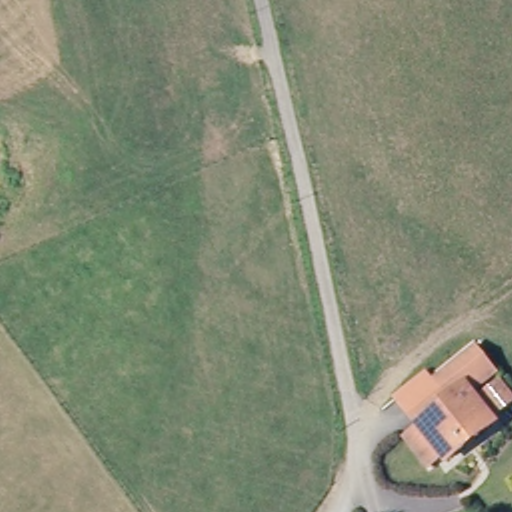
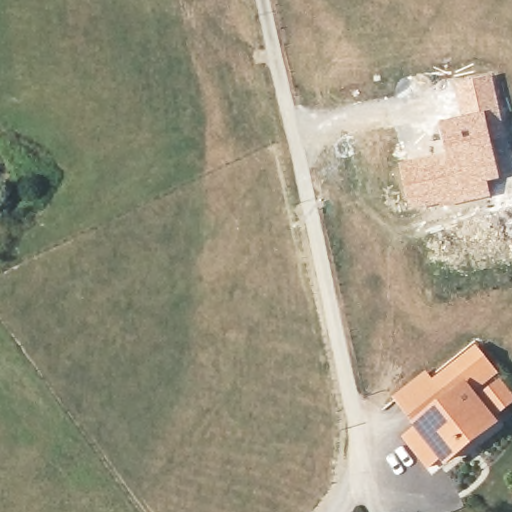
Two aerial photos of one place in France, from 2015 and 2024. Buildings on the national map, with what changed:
new [(492,76),(500,112),(487,114),(462,116),(455,85),(492,76)]
new [(445,153),(438,122),(462,116),(487,114),(500,179),(488,182),(491,196),(410,210),(398,161),(445,153)]
unchanged [(407,443),(423,430),(418,425),(451,397),(436,379),(472,349),(492,373),(471,392),(498,424),(451,464),(447,459),(432,472),(407,443)]
unchanged [(436,379),(451,397),(418,425),(403,407),(396,399),(429,371),(430,372),(436,379)]

